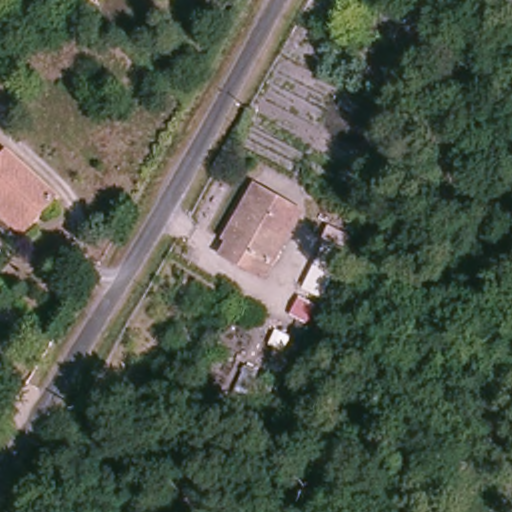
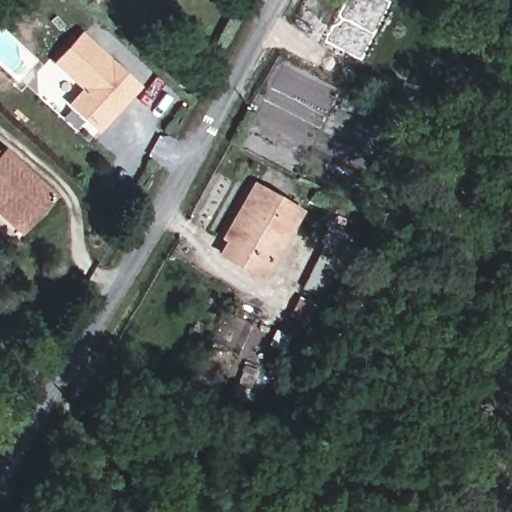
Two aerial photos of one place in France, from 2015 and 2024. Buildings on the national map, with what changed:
new [(106,120),(76,93),(90,77),(62,51),(89,22),(147,75),(135,89),(125,99),(106,120)]
unchanged [(0,213),(0,211),(5,206),(0,201),(0,154),(6,149),(55,195),(27,226),(21,233),(0,213)]
unchanged [(300,211),(263,277),(226,256),(231,246),(221,240),(236,215),(254,185),(300,211)]
unchanged [(328,239),(348,250),(327,302),(303,290),(328,239)]

